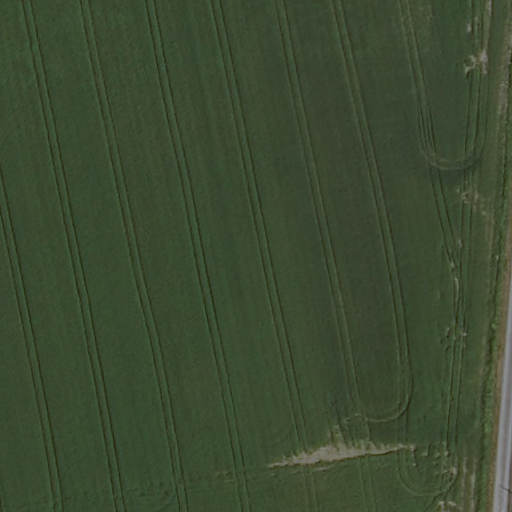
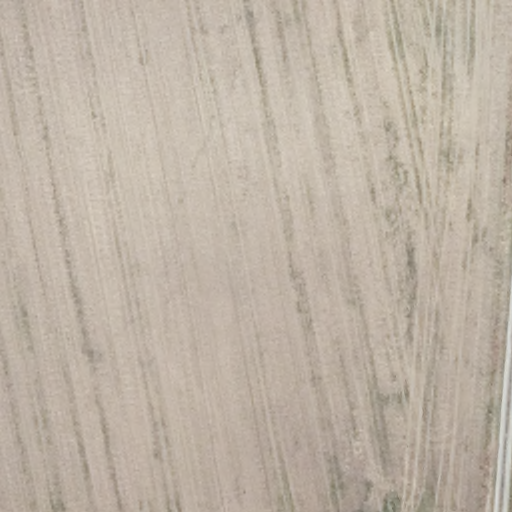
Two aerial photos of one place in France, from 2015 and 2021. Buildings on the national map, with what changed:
[]

